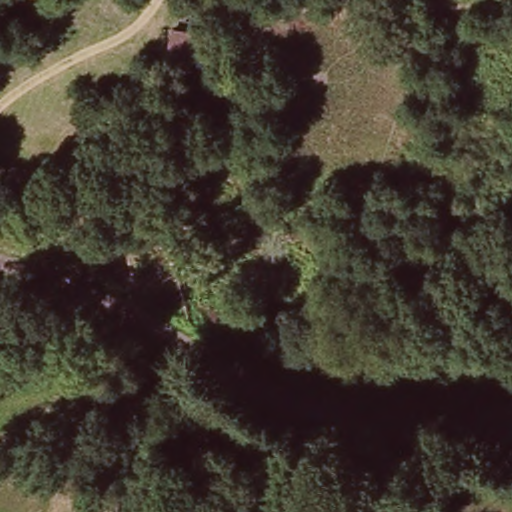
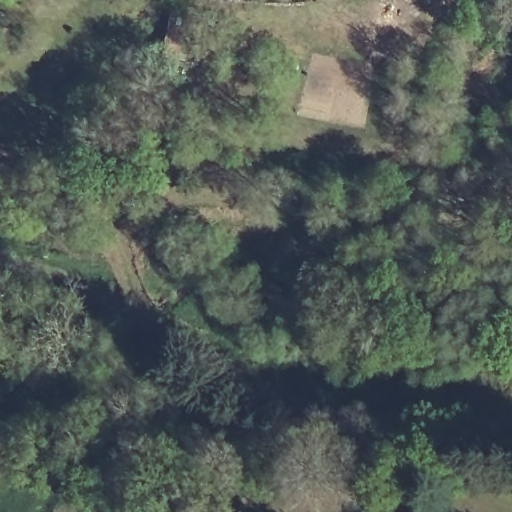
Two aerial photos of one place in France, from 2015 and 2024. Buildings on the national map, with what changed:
unchanged [(170,27),(203,34),(199,53),(166,46),(170,27)]

